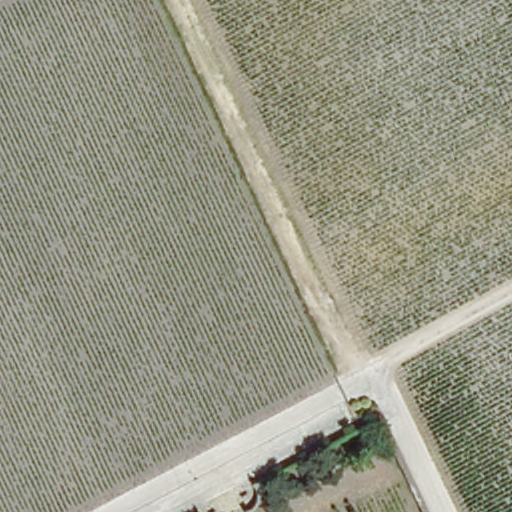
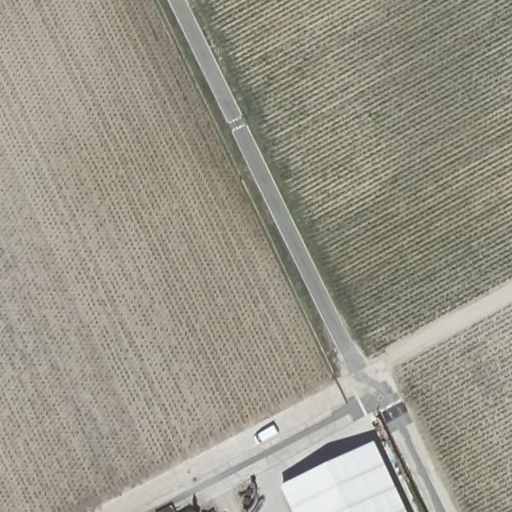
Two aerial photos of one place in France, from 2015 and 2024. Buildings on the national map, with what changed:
new [(281,486),(375,441),(411,512),(294,512),(281,486)]

